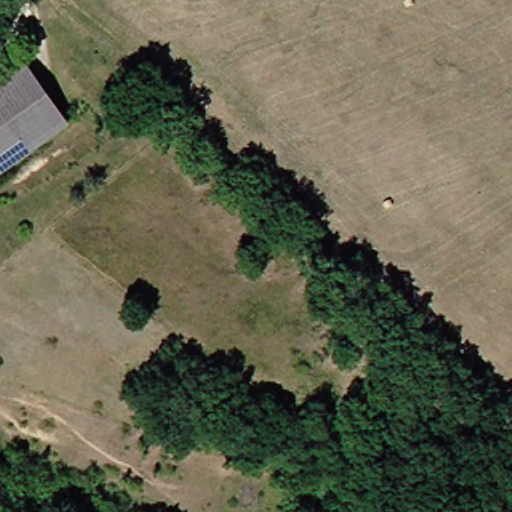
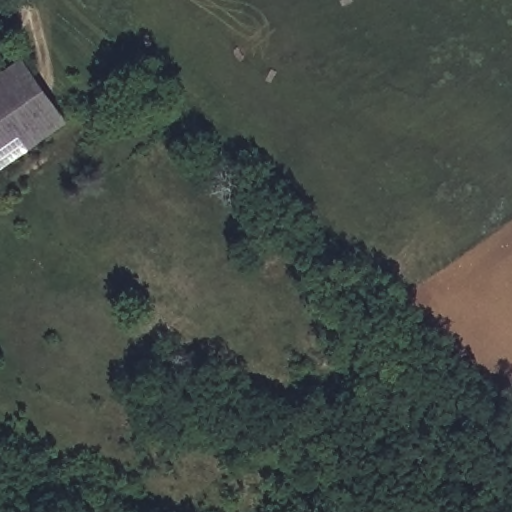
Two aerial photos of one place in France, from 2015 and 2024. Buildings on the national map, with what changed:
unchanged [(0,178),(0,86),(16,72),(26,66),(70,117),(0,178)]

